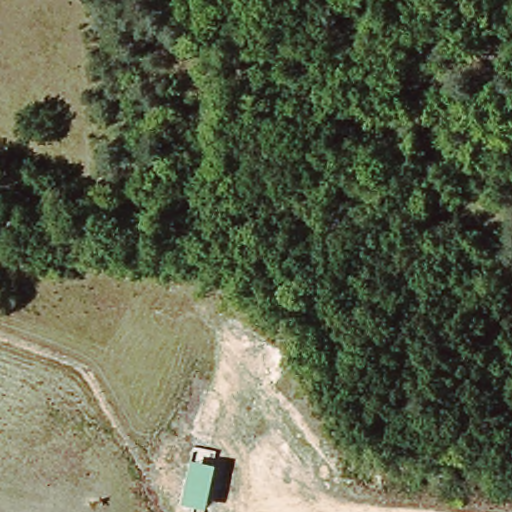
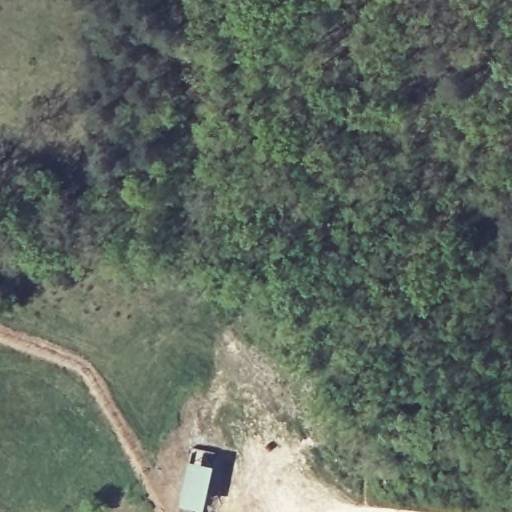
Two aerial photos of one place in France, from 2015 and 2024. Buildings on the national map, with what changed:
unchanged [(214,465),(203,509),(180,503),(190,459),(214,465)]

